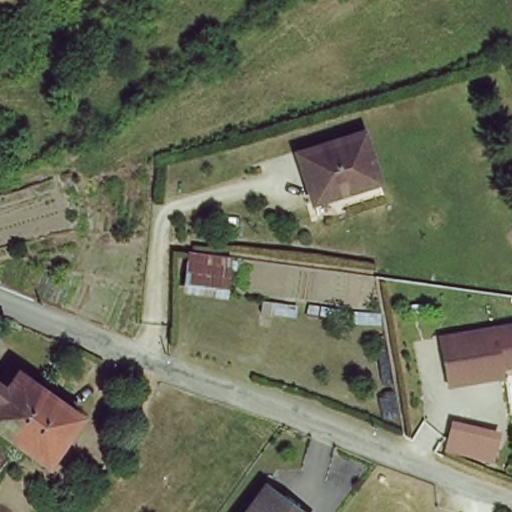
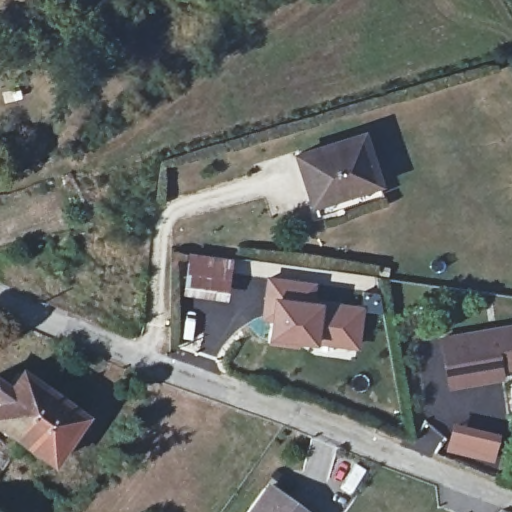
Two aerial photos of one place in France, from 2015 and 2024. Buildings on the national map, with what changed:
unchanged [(298,159),(295,147),(363,125),(370,146),(378,169),(310,192),(298,159)]
unchanged [(378,169),(384,185),(315,206),(310,192),(378,169)]
unchanged [(185,283),(188,251),(227,256),(222,289),(185,283)]
new [(320,281),(318,297),(365,304),(358,347),(269,335),(270,325),(257,324),(263,273),(320,281)]
unchanged [(499,372),(455,379),(448,331),(512,321),(512,370),(499,372)]
unchanged [(0,423),(0,377),(8,383),(20,366),(47,386),(12,432),(0,423)]
unchanged [(83,415),(50,461),(22,439),(12,432),(47,386),(83,415)]
new [(447,447),(455,426),(497,443),(489,463),(447,447)]
unchanged [(308,512),(247,512),(269,483),(308,512)]

